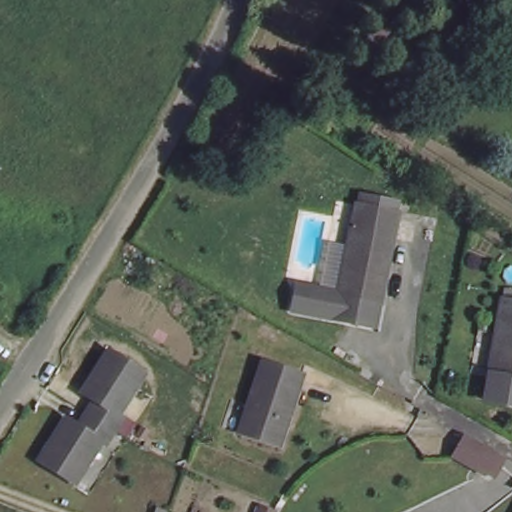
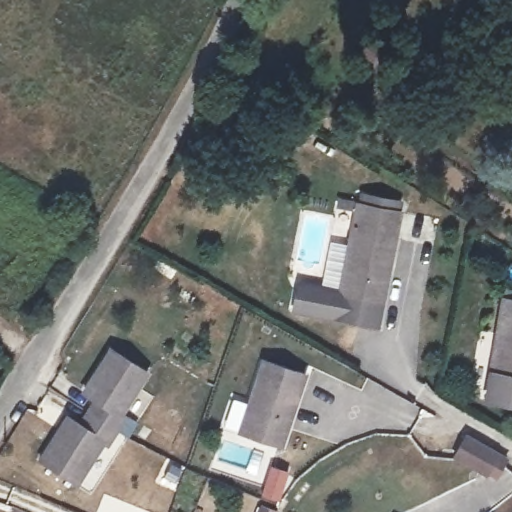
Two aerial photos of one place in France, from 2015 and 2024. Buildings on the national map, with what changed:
unchanged [(347,269),(362,197),(405,207),(383,303),(342,294),(347,269)]
unchanged [(379,323),(297,308),(300,281),(329,285),(334,267),(347,269),(342,294),(383,303),(379,323)]
unchanged [(504,288),(512,290),(512,381),(490,376),(504,288)]
unchanged [(68,414),(80,422),(97,395),(85,387),(110,344),(147,367),(122,409),(126,412),(109,440),(105,437),(80,480),(42,457),(68,414)]
unchanged [(268,354),(272,355),(310,368),(287,440),(251,427),(247,426),(268,354)]
unchanged [(460,454),(472,434),(505,453),(492,474),(460,454)]

